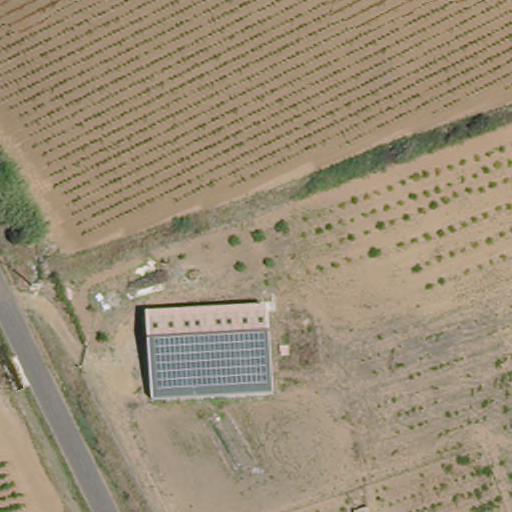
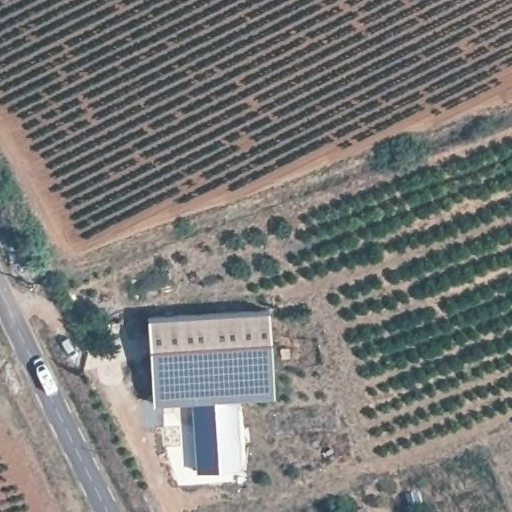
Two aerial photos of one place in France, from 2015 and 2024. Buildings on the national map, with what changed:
unchanged [(154,405),(146,317),(269,309),(274,396),(154,405)]
new [(191,402),(236,399),(241,465),(196,469),(191,402)]

